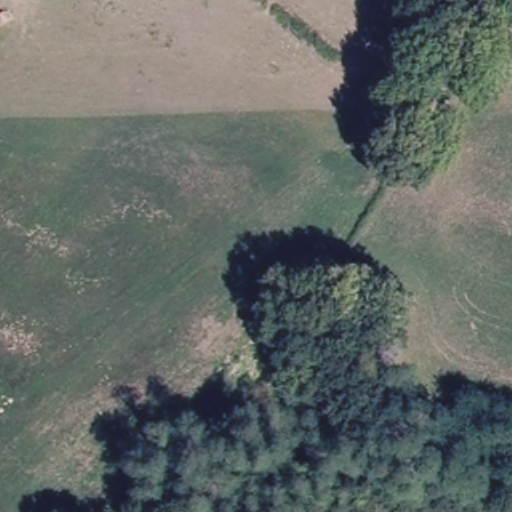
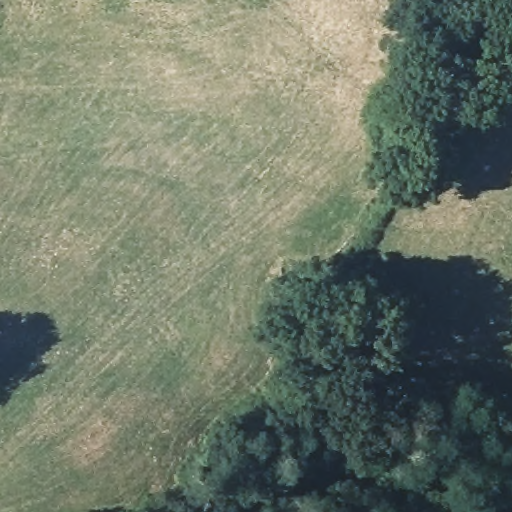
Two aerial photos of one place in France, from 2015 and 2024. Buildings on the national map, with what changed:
unchanged [(459,61),(448,76),(417,58),(427,42),(459,61)]

